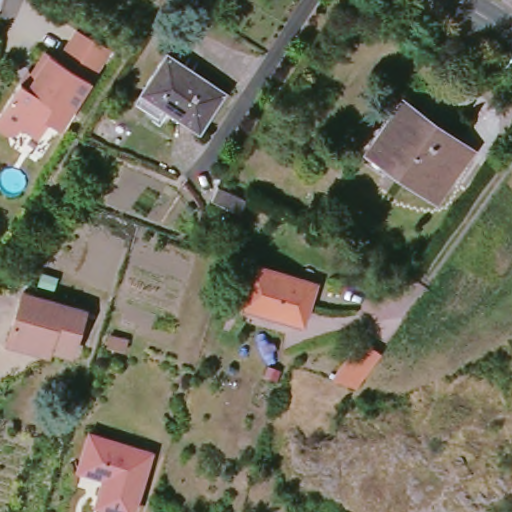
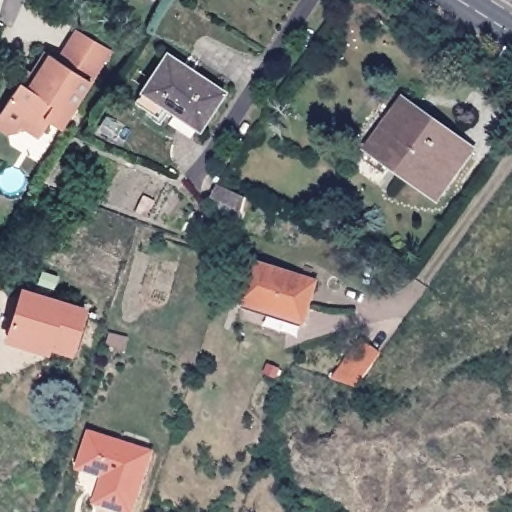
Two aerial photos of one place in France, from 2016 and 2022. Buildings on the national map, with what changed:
unchanged [(37,75),(51,53),(63,61),(75,45),(83,32),(115,52),(107,65),(65,129),(55,122),(44,137),(27,126),(25,130),(12,133),(0,125),(0,122),(25,83),(33,72),(37,75)]
unchanged [(165,106),(157,117),(135,102),(166,54),(223,91),(200,129),(165,106)]
unchanged [(397,165),(390,175),(367,158),(407,101),(477,150),(442,198),(397,165)]
unchanged [(245,198),(242,212),(212,198),(217,185),(245,198)]
unchanged [(243,302),(255,264),(315,282),(303,321),(243,302)]
unchanged [(58,277),(54,289),(38,284),(42,272),(58,277)]
unchanged [(48,345),(50,340),(33,335),(30,345),(8,338),(24,291),(85,311),(70,352),(48,345)]
unchanged [(358,390),(335,384),(335,383),(366,343),(384,356),(358,390)]
unchanged [(107,472),(98,469),(97,473),(80,468),(91,433),(151,452),(132,512),(127,512),(97,503),(107,472)]

